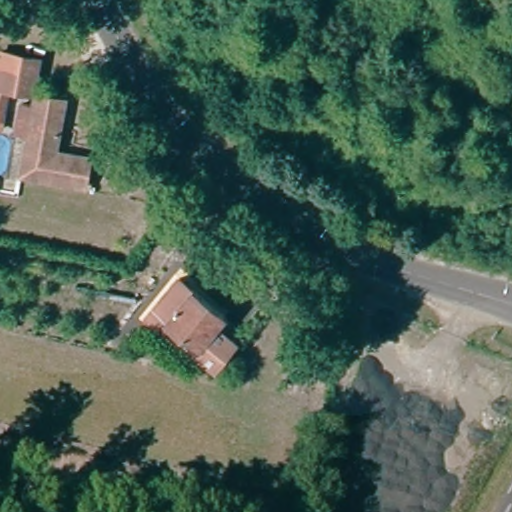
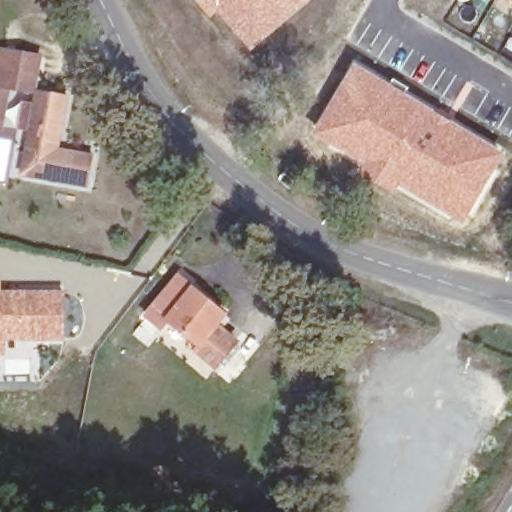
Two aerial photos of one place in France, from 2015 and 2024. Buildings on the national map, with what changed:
new [(209,10),(201,0),(214,0),(217,4),(209,10)]
new [(302,0),(258,36),(250,44),(232,22),(214,0),(302,0)]
new [(512,0),(512,2),(509,0),(512,0)]
unchanged [(42,49),(33,94),(15,91),(6,124),(0,123),(0,43),(42,49)]
new [(353,61),(506,154),(462,224),(397,185),(393,194),(359,170),(362,165),(311,134),(353,61)]
unchanged [(59,141),(96,149),(91,179),(23,165),(39,84),(68,90),(59,141)]
unchanged [(182,270),(224,307),(215,319),(237,335),(215,362),(193,346),(200,337),(171,311),(163,319),(148,309),(182,270)]
new [(1,279),(2,289),(63,289),(64,340),(6,341),(6,354),(0,354),(0,279),(1,279)]
unchanged [(306,288),(304,308),(278,304),(282,283),(306,288)]

